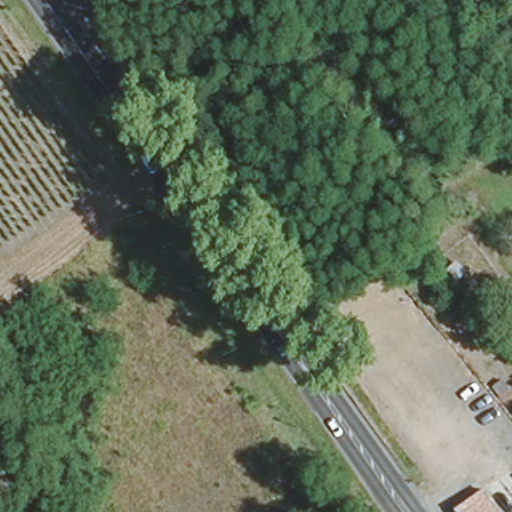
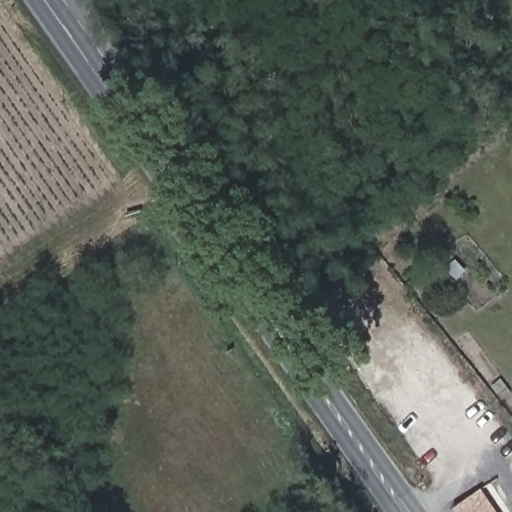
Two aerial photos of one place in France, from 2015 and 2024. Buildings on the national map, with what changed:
unchanged [(474,478),(500,512),(460,512),(450,498),(474,478)]

